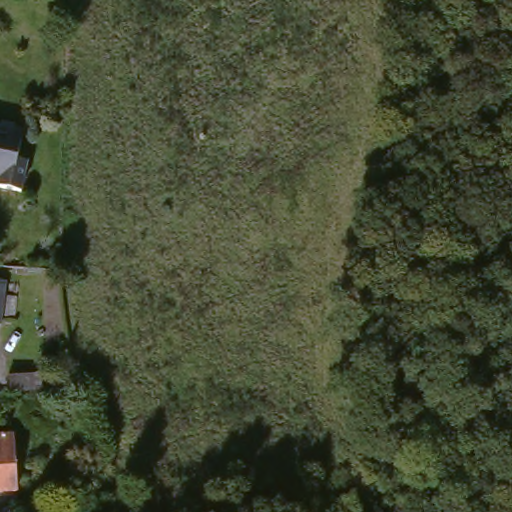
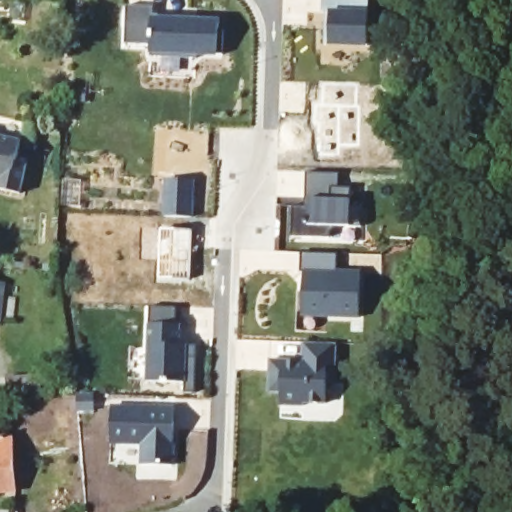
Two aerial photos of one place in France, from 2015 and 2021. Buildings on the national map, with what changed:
new [(321,12),(321,0),(368,0),(368,10),(366,46),(331,44),(323,45),(324,12),(321,12)]
new [(148,46),(123,45),(124,4),(151,4),(151,17),(219,21),(219,31),(223,31),(223,55),(217,55),(197,54),(196,57),(148,55),(148,46)]
unchanged [(21,145),(16,166),(26,169),(19,199),(0,194),(0,140),(21,145)]
new [(292,202),(304,202),(306,172),(339,172),(339,186),(351,186),(350,199),(350,207),(362,206),(362,227),(350,227),(341,227),(331,232),(331,237),(291,236),(292,202)]
new [(163,178),(191,179),(191,216),(161,215),(163,178)]
new [(303,271),(303,254),(336,254),(335,270),(361,271),(361,316),(301,317),(303,271)]
unchanged [(6,298),(4,317),(0,317),(0,298),(6,298)]
new [(184,383),(146,382),(147,323),(151,324),(151,307),(175,307),(174,323),(181,323),(181,344),(186,344),(196,344),(194,393),(184,392),(184,383)]
new [(281,392),(268,392),(268,358),(301,360),(302,342),(336,343),(334,382),(326,382),(326,404),(304,403),(304,406),(281,405),(281,392)]
unchanged [(6,377),(39,375),(40,391),(29,392),(8,393),(6,377)]
new [(174,407),(174,465),(143,465),(143,443),(111,442),(111,407),(174,407)]
unchanged [(8,440),(11,496),(0,496),(0,440),(8,440)]
unchanged [(9,510),(10,512),(0,512),(0,510),(9,510)]

